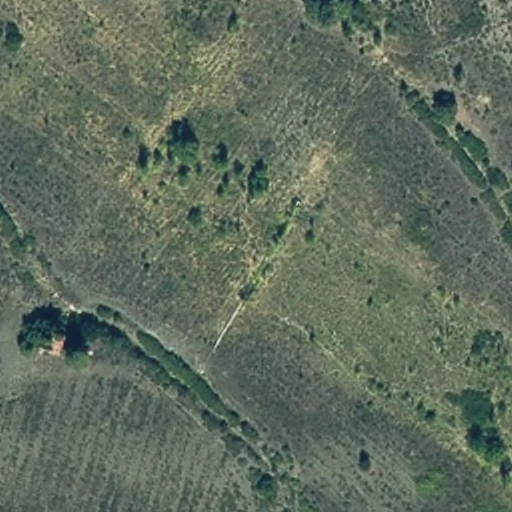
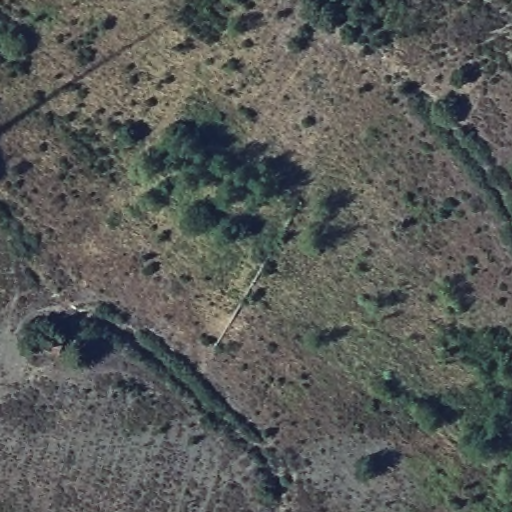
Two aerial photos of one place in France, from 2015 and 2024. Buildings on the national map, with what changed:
unchanged [(68,332),(60,355),(38,345),(47,324),(68,332)]

